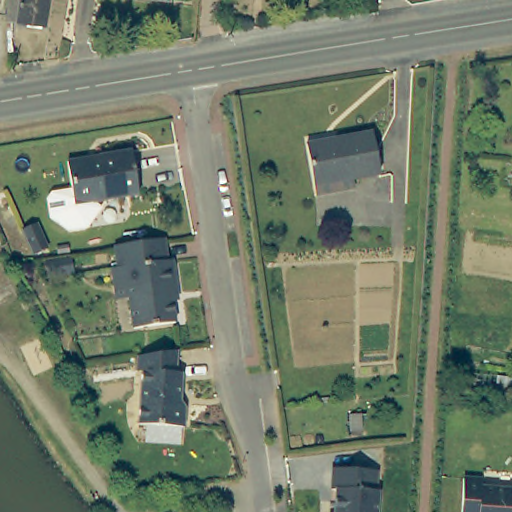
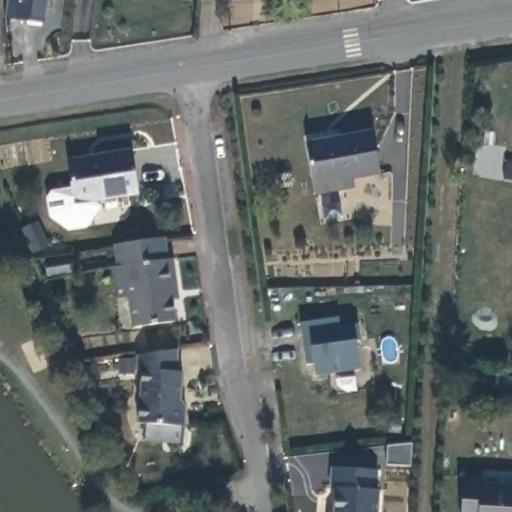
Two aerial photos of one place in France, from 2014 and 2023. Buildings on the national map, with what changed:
unchanged [(41,27),(3,21),(6,0),(46,0),(41,27)]
unchanged [(380,176),(314,188),(306,145),(372,133),(380,176)]
unchanged [(67,229),(50,216),(47,197),(51,192),(71,189),(67,160),(131,150),(137,194),(92,201),(100,206),(85,226),(67,229)]
unchanged [(47,242),(31,249),(21,226),(38,220),(47,242)]
unchanged [(113,267),(119,266),(116,243),(165,237),(168,260),(174,260),(177,286),(171,287),(175,320),(134,325),(130,296),(116,297),(113,267)]
unchanged [(68,256),(70,269),(44,272),(42,258),(68,256)]
new [(365,342),(356,343),(361,370),(314,376),(313,365),(306,366),(302,325),(337,317),(339,327),(359,324),(365,342)]
unchanged [(182,405),(187,405),(186,423),(140,422),(143,370),(137,369),(138,353),(177,348),(176,370),(183,370),(182,405)]
unchanged [(497,375),(512,377),(512,393),(495,392),(497,375)]
unchanged [(377,492),(380,492),(379,512),(336,512),(337,490),(332,490),(334,468),(379,471),(377,492)]
unchanged [(480,481),(480,489),(512,491),(512,512),(461,512),(462,480),(480,481)]

